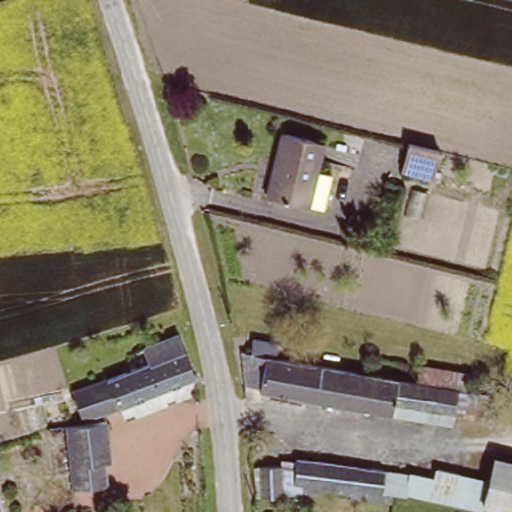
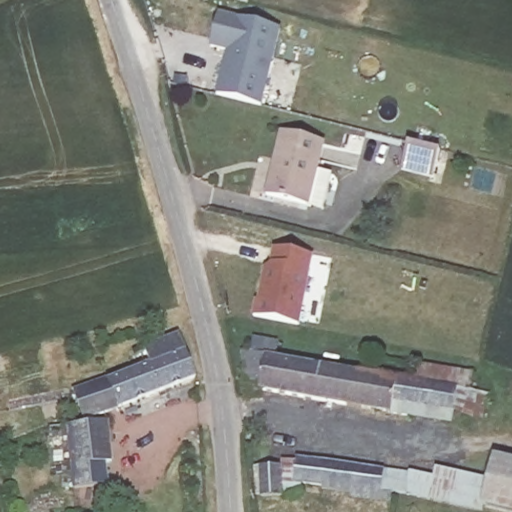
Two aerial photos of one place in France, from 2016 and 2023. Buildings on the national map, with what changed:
new [(215,96),(226,53),(209,48),(218,12),(281,29),(262,108),(215,96)]
unchanged [(318,170),(330,173),(322,206),(266,191),(281,129),(326,140),(318,170)]
unchanged [(438,171),(405,164),(411,138),(444,146),(438,171)]
new [(301,326),(253,317),(254,300),(257,300),(264,264),(269,264),(272,248),(314,256),(301,326)]
unchanged [(131,350),(183,333),(186,346),(194,376),(85,420),(72,390),(138,365),(131,350)]
unchanged [(261,387),(261,394),(249,392),(247,381),(252,363),(264,365),(266,355),(248,352),(253,336),(278,343),(274,357),(286,359),(334,368),(404,378),(394,413),(261,387)]
unchanged [(417,360),(469,368),(465,385),(492,391),(487,419),(454,413),(461,390),(429,382),(413,380),(417,360)]
unchanged [(512,380),(499,377),(501,368),(512,372),(512,378),(512,380)]
unchanged [(404,378),(429,382),(461,390),(452,424),(394,413),(404,378)]
unchanged [(56,474),(53,430),(53,424),(86,423),(111,422),(115,459),(108,460),(110,483),(80,486),(74,486),(74,473),(56,474)]
unchanged [(296,482),(300,455),(433,471),(434,464),(482,476),(490,453),(512,458),(512,512),(491,512),(379,490),(296,482)]
unchanged [(291,492),(261,496),(256,468),(286,464),(291,492)]

